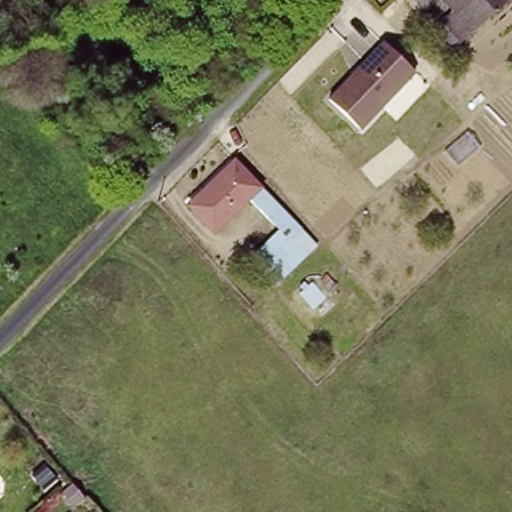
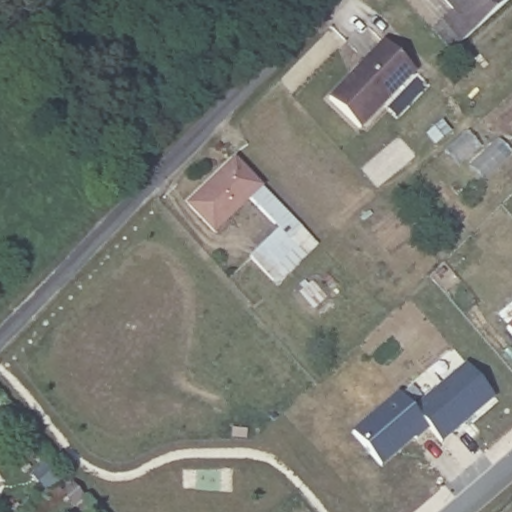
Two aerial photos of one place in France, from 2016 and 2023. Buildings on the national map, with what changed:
unchanged [(441,18),(453,6),(448,0),(500,0),(460,38),(441,18)]
unchanged [(382,42),(415,74),(360,130),(328,99),(382,42)]
unchanged [(192,201),(227,168),(230,171),(241,160),(264,184),(218,228),(192,201)]
unchanged [(278,281),(268,270),(253,253),(280,228),(270,216),(283,204),(302,225),(305,228),(319,244),(278,281)]
new [(512,323),(512,337),(505,330),(512,323)]
new [(466,364),(496,399),(443,443),(429,430),(414,410),(466,364)]
new [(429,430),(381,467),(352,432),(398,392),(414,410),(429,430)]

